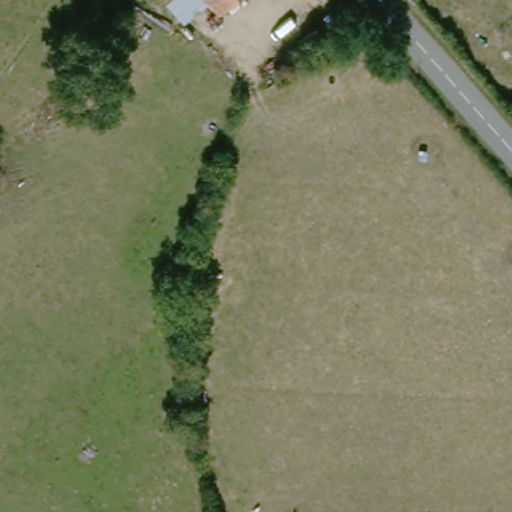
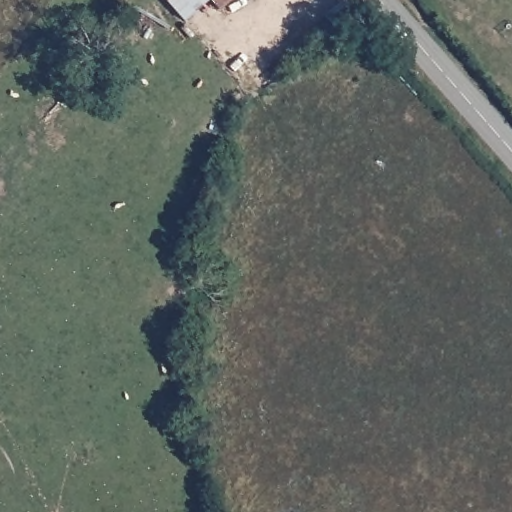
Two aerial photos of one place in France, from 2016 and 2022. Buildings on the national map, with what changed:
unchanged [(166,0),(191,0),(177,12),(166,0)]
unchanged [(202,0),(218,0),(209,8),(202,0)]

